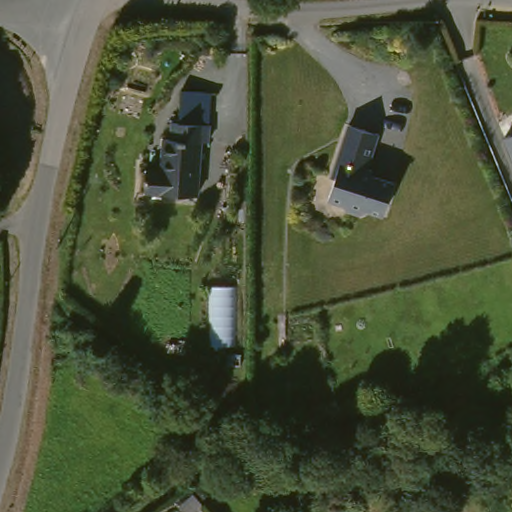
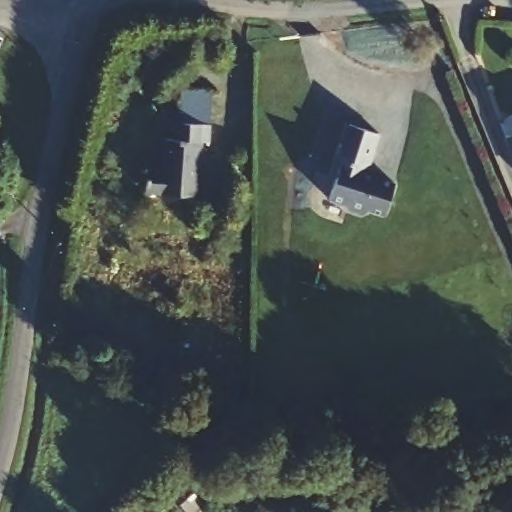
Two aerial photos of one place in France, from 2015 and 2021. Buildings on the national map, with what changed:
unchanged [(149,165),(161,166),(164,135),(173,136),(180,88),(218,95),(198,197),(145,192),(149,165)]
unchanged [(383,128),(373,164),(378,165),(376,170),(399,177),(390,207),(374,202),(373,206),(368,209),(353,204),(350,199),(334,195),(340,173),(338,172),(353,119),(383,128)]
unchanged [(512,137),(512,144),(509,138),(512,137)]

